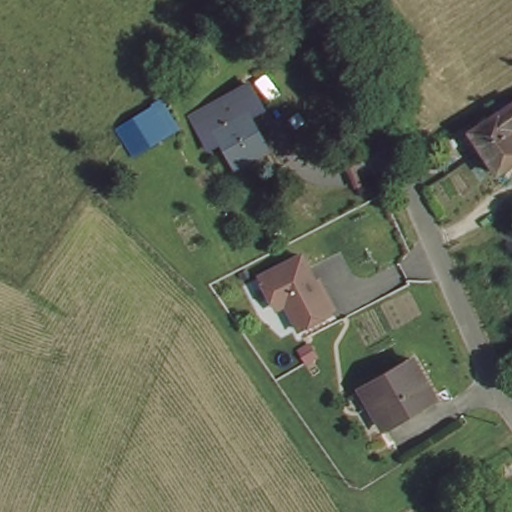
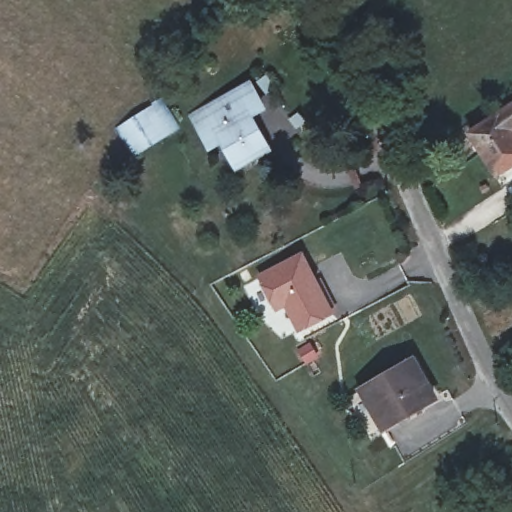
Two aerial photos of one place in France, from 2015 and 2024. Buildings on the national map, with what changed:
unchanged [(258,107),(249,112),(269,149),(239,165),(222,132),(205,142),(189,114),(206,105),(246,84),(258,107)]
unchanged [(480,153),(465,136),(497,115),(512,105),(512,164),(497,176),(480,153)]
unchanged [(145,117),(157,111),(166,128),(138,142),(141,147),(130,154),(122,138),(149,125),(145,117)]
unchanged [(335,304),(304,322),(289,297),(284,300),(280,302),(262,271),(266,268),(303,247),(335,304)]
unchanged [(415,357),(440,400),(386,432),(361,391),(415,357)]

